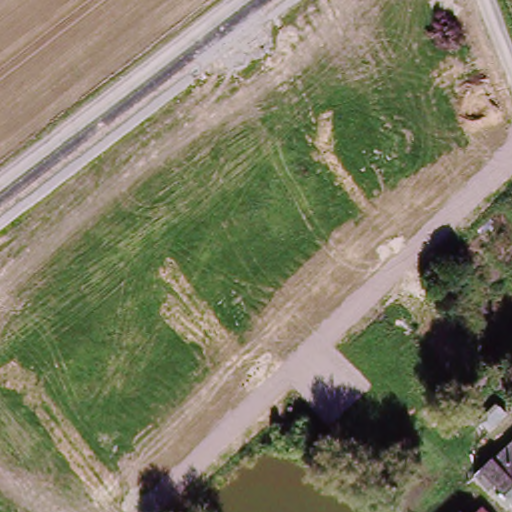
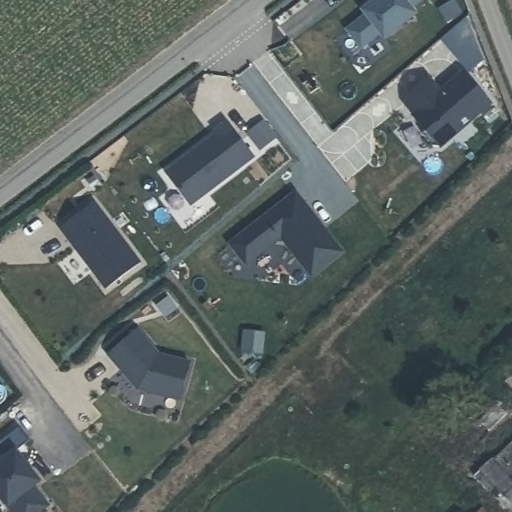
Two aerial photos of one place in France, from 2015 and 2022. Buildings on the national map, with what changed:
new [(367,9),(364,6),(371,0),(429,0),(417,9),(422,15),(388,39),(385,33),(365,48),(351,28),(370,14),(367,9)]
new [(405,99),(417,87),(418,88),(427,80),(438,92),(442,89),(444,90),(462,73),(490,101),(438,151),(431,151),(418,139),(422,135),(409,121),(415,116),(405,106),(405,99)]
new [(220,132),(217,129),(230,119),(257,155),(192,204),(167,172),(220,132)]
new [(296,189),(342,249),(312,272),(283,234),(248,261),(231,239),(296,189)]
new [(97,201),(145,260),(112,287),(64,227),(97,201)]
new [(140,328),(162,354),(193,362),(183,399),(140,387),(110,352),(140,328)]
new [(0,455),(0,440),(17,427),(27,441),(13,453),(29,472),(27,473),(32,480),(37,481),(30,486),(46,505),(37,512),(11,512),(0,499),(0,462),(3,459),(0,455)]
unchanged [(478,474),(486,468),(512,446),(512,500),(500,486),(493,491),(478,474)]
unchanged [(485,512),(470,512),(479,504),(485,512)]

